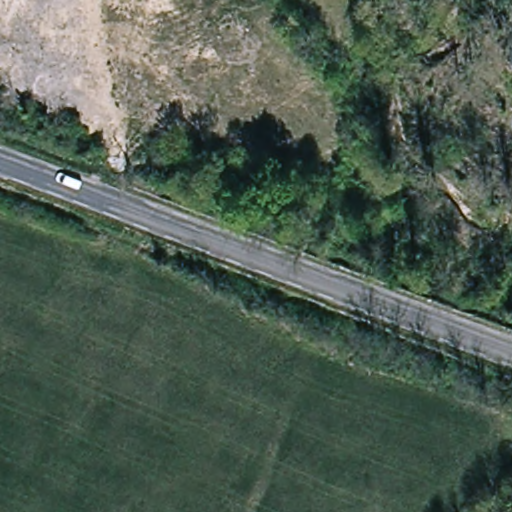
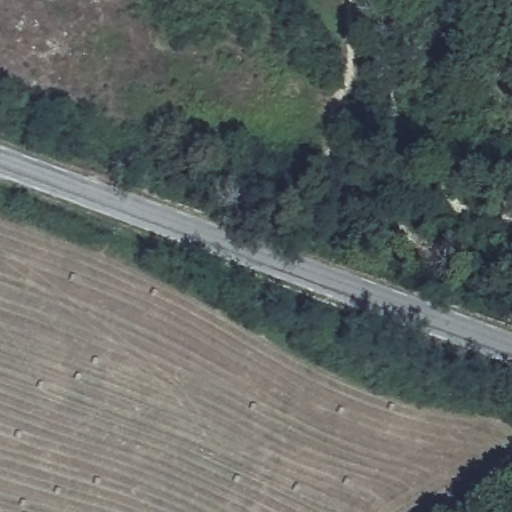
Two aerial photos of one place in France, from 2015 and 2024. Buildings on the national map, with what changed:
[]

